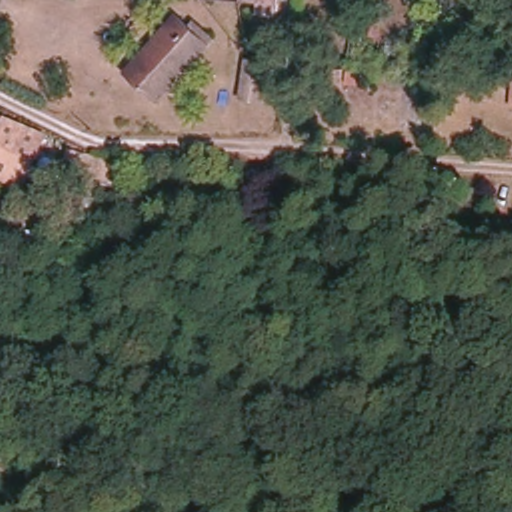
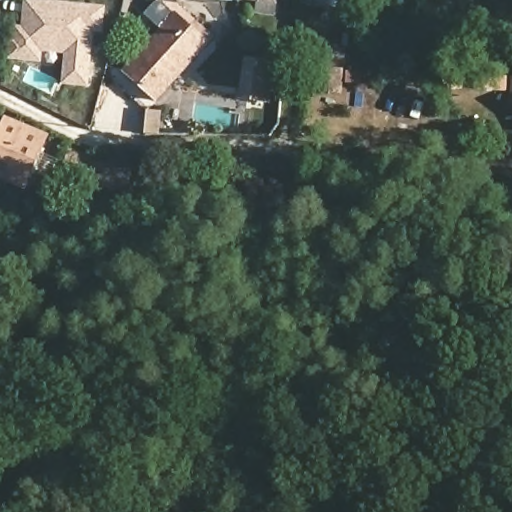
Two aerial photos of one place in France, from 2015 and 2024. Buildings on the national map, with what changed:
unchanged [(260,6),(260,0),(276,0),(276,8),(260,6)]
unchanged [(469,6),(450,3),(450,0),(470,0),(469,6)]
new [(108,9),(104,37),(94,36),(90,91),(63,87),(64,57),(43,55),(43,64),(15,62),(16,30),(23,31),(23,1),(108,9)]
unchanged [(128,73),(177,19),(188,29),(193,23),(212,39),(155,98),(128,73)]
unchanged [(262,102),(243,99),(247,59),(251,60),(268,62),(275,63),(269,103),(262,102)]
new [(319,68),(343,69),(342,89),(341,95),(317,94),(318,88),(319,68)]
unchanged [(511,105),(512,97),(512,105),(511,105)]
unchanged [(34,143),(41,147),(34,162),(28,179),(0,168),(0,134),(3,129),(34,143)]
unchanged [(69,150),(133,168),(122,194),(63,176),(69,150)]

